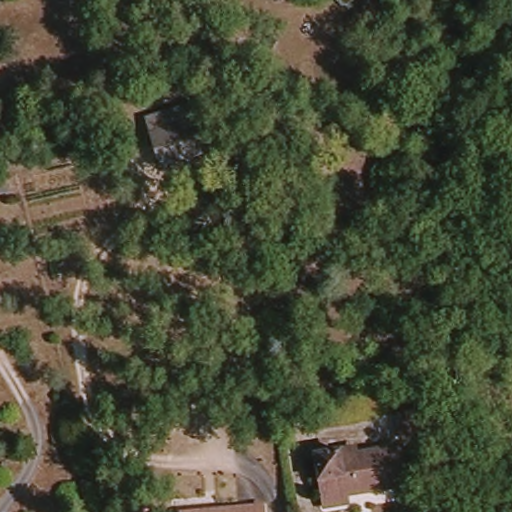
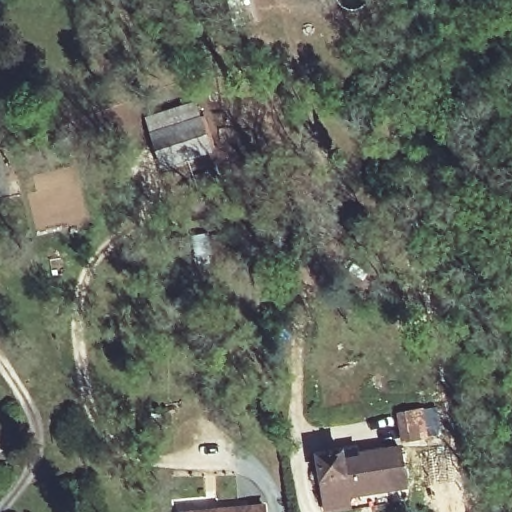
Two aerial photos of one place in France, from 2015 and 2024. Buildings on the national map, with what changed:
unchanged [(113,125),(68,138),(57,104),(103,91),(113,125)]
new [(196,99),(215,153),(160,171),(143,115),(196,99)]
demolished [(207,142),(162,155),(151,121),(197,108),(207,142)]
new [(207,231),(211,262),(195,264),(190,234),(207,231)]
unchanged [(425,410),(430,440),(400,443),(395,415),(425,410)]
unchanged [(323,512),(321,500),(312,455),(357,447),(358,454),(400,447),(407,485),(344,496),(345,508),(328,512),(323,512)]
unchanged [(263,512),(197,512),(263,507),(263,512)]

